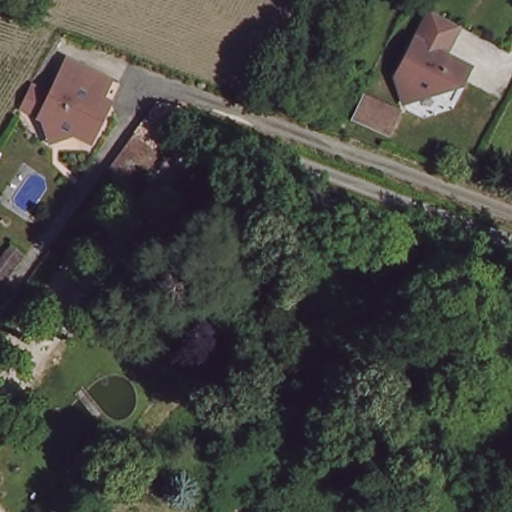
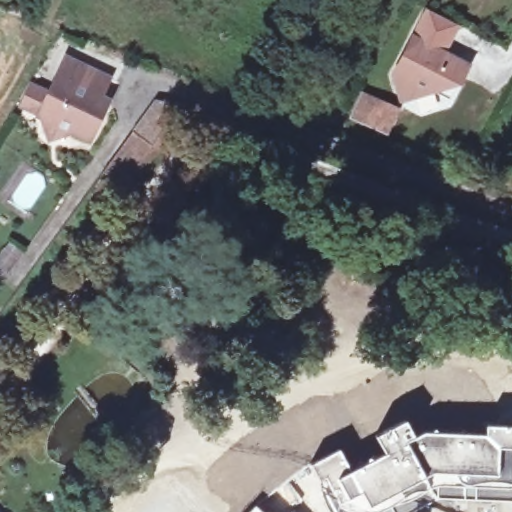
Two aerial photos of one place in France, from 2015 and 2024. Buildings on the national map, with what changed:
unchanged [(430,86),(399,96),(390,68),(425,2),(453,17),(438,47),(463,59),(453,78),(445,94),(430,86)]
unchanged [(35,120),(16,111),(27,90),(45,99),(55,80),(57,81),(66,62),(107,83),(97,103),(100,104),(93,117),(80,143),(66,135),(54,141),(45,146),(35,120)]
unchanged [(352,113),(366,91),(397,110),(384,132),(352,113)]
unchanged [(151,105),(176,109),(147,148),(118,189),(110,183),(100,177),(100,176),(130,135),(151,105)]
new [(339,447),(351,468),(381,451),(372,434),(405,417),(414,434),(421,430),(429,429),(482,430),(483,422),(512,423),(512,502),(437,501),(416,512),(327,512),(314,479),(307,466),(339,447)]
new [(255,504),(265,512),(248,512),(255,504)]
new [(291,510),(292,512),(290,512),(291,510)]

